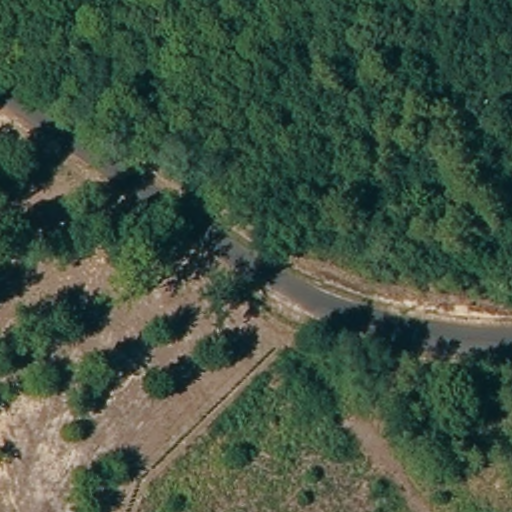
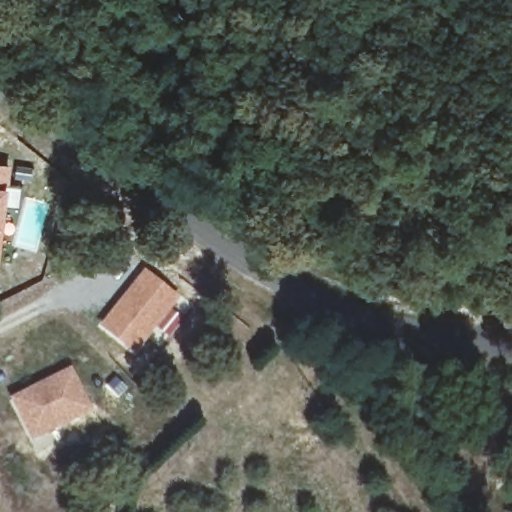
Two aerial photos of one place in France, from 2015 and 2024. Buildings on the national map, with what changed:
new [(11,164),(9,186),(20,187),(19,193),(14,193),(13,194),(10,194),(0,259),(0,163),(11,164)]
new [(145,268),(181,299),(173,309),(180,315),(169,328),(167,327),(163,333),(158,329),(135,357),(97,325),(145,268)]
new [(95,409),(33,441),(10,397),(72,367),(95,409)]

